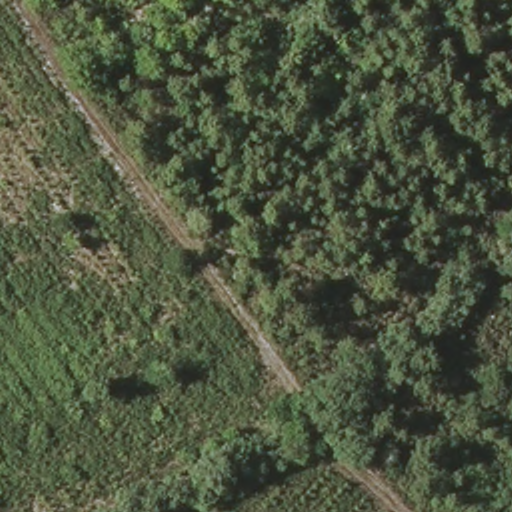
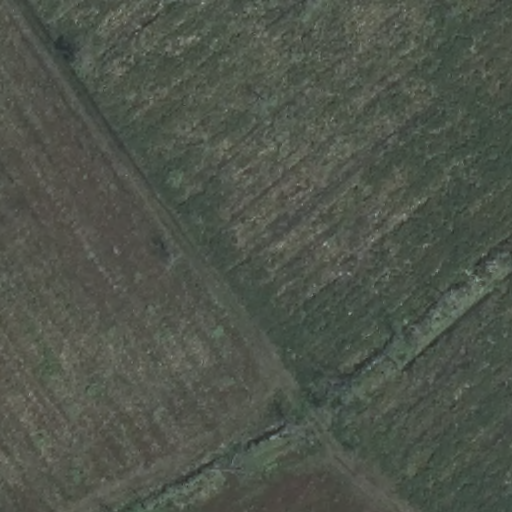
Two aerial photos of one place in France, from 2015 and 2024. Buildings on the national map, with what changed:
[]

